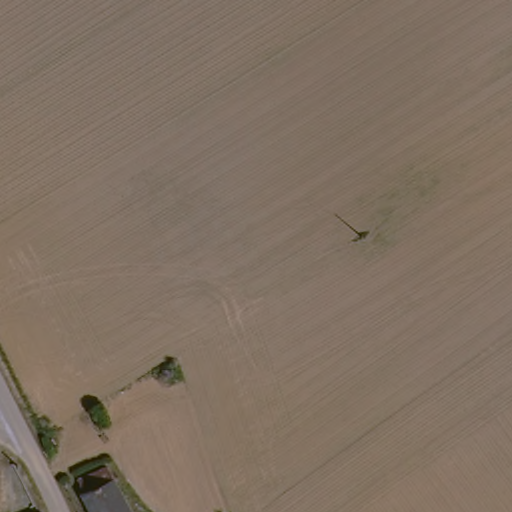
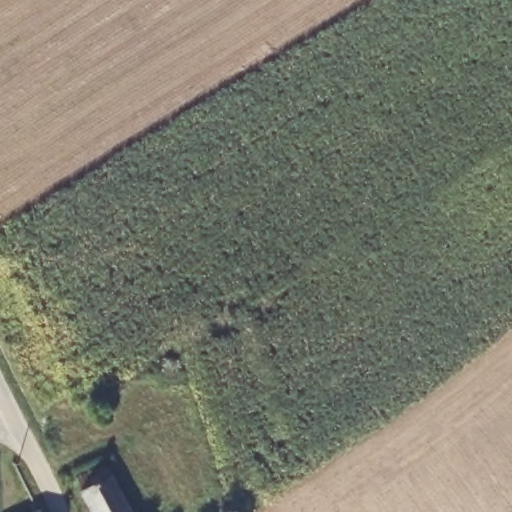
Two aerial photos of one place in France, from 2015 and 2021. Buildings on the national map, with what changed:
unchanged [(124,512),(88,512),(77,493),(104,478),(124,512)]

